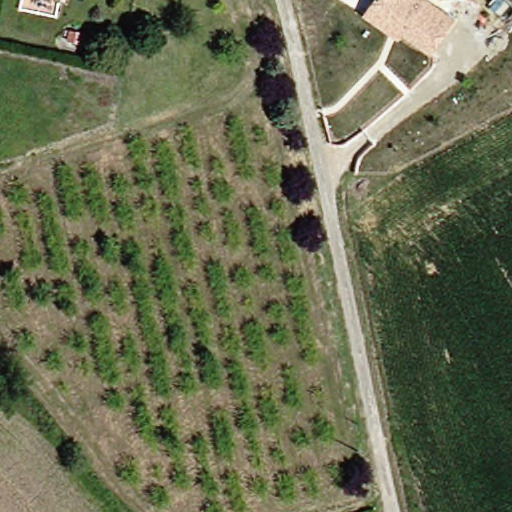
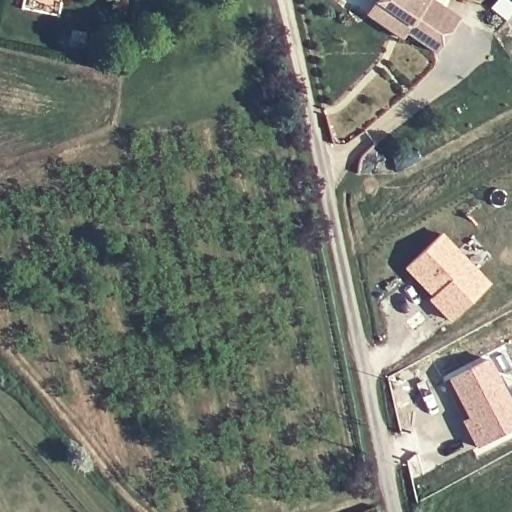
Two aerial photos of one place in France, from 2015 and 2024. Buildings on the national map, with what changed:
unchanged [(365,14),(374,1),(375,0),(432,0),(455,16),(431,50),(403,30),(399,36),(365,14)]
new [(447,323),(426,300),(430,297),(402,269),(442,232),(490,284),(447,323)]
new [(512,429),(475,449),(460,421),(467,418),(447,380),(489,358),(512,404),(512,429)]

